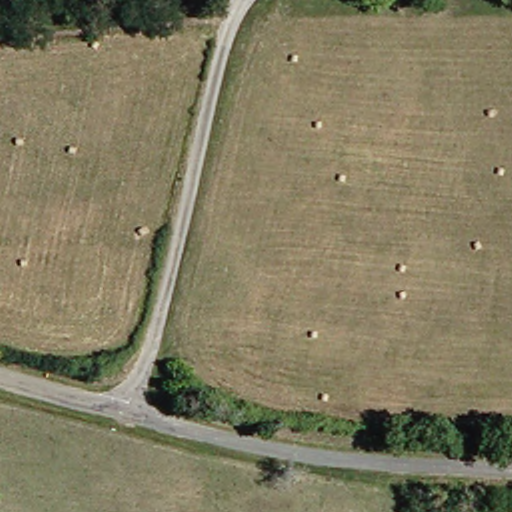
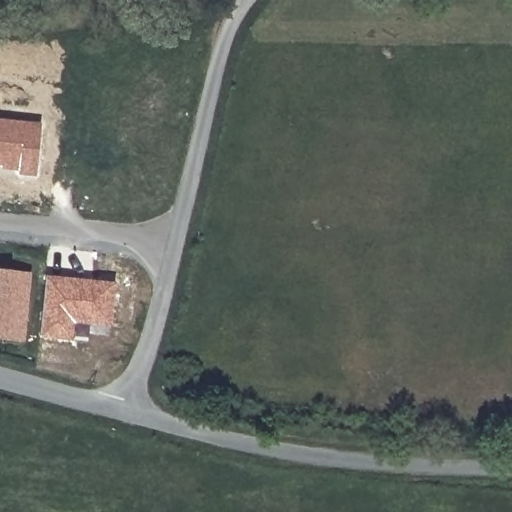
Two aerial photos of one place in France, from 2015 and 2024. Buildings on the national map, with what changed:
new [(19,176),(19,172),(1,170),(2,166),(0,166),(0,120),(40,124),(36,178),(19,176)]
new [(24,340),(3,338),(0,338),(0,272),(30,275),(24,340)]
new [(111,327),(75,324),(72,342),(40,338),(46,276),(116,283),(111,327)]

